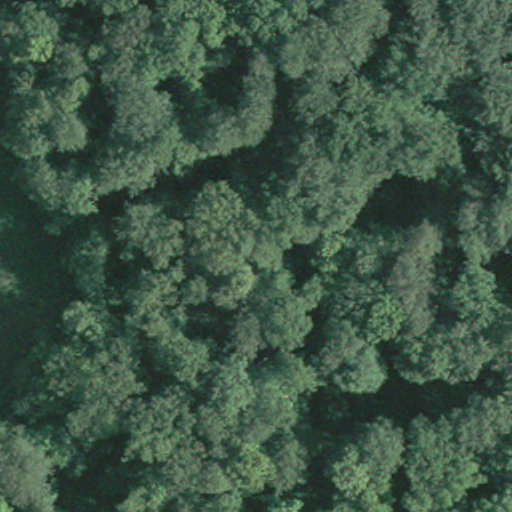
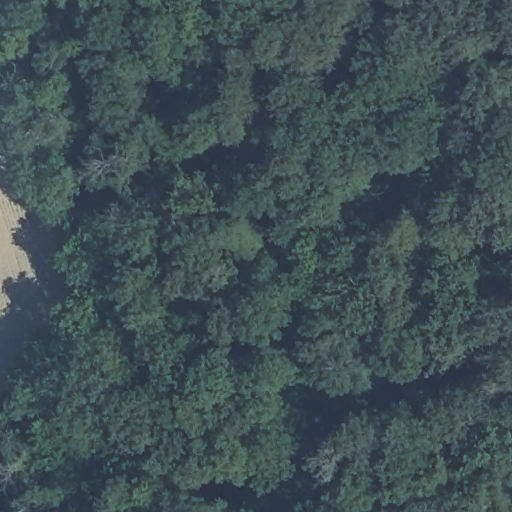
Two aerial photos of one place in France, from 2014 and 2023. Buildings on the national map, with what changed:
[]

